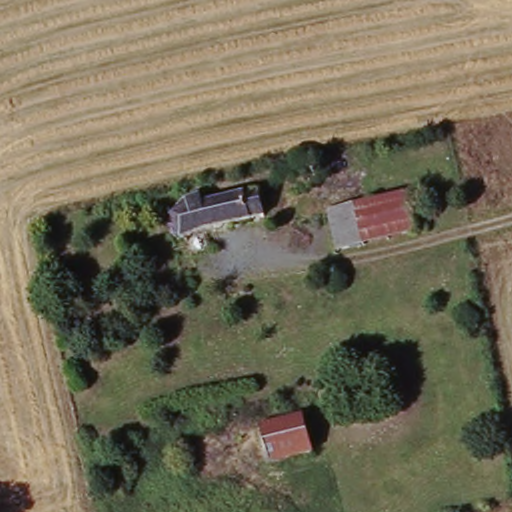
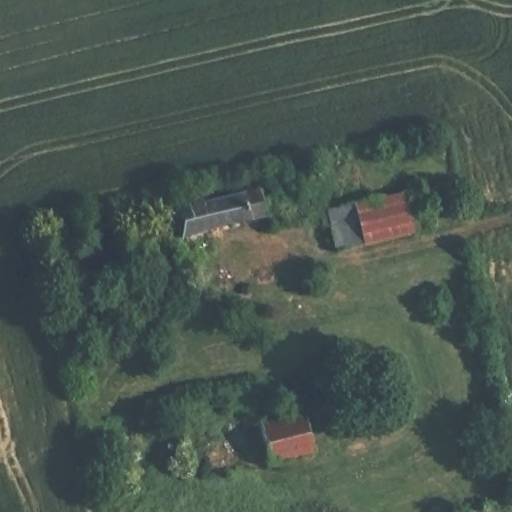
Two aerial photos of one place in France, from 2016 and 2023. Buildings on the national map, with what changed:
unchanged [(171,201),(188,199),(186,189),(203,185),(204,194),(257,183),(264,212),(178,231),(171,201)]
unchanged [(361,245),(353,204),(402,193),(413,234),(361,245)]
unchanged [(353,204),(361,245),(337,249),(328,209),(353,204)]
unchanged [(312,446),(263,459),(254,424),(303,410),(312,446)]

